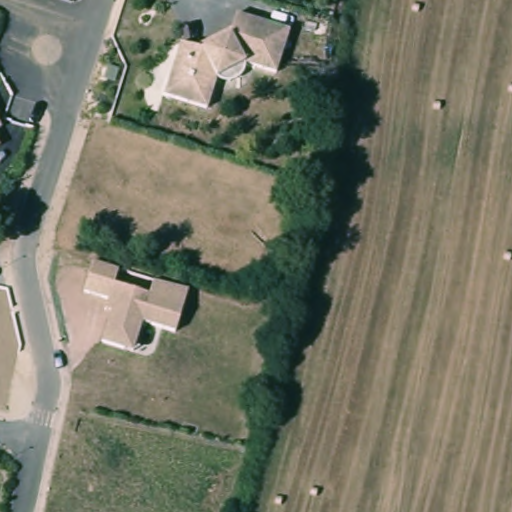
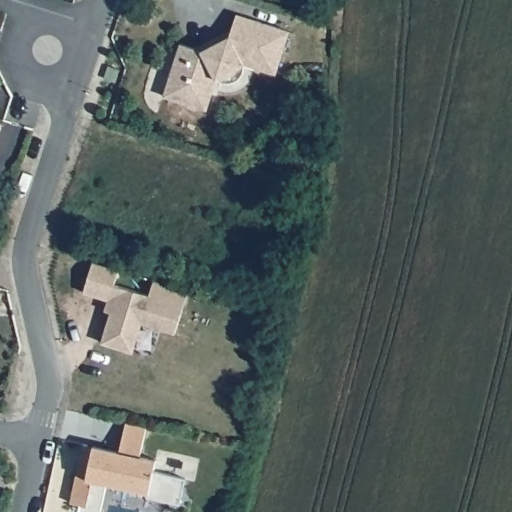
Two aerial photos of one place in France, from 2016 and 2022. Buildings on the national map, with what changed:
unchanged [(207,46),(229,34),(237,9),(293,29),(280,72),(246,62),(219,78),(211,109),(164,95),(179,37),(207,46)]
unchanged [(0,124),(0,121),(1,123),(0,124)]
unchanged [(0,144),(0,137),(3,142),(0,144)]
unchanged [(110,312),(104,310),(106,300),(83,291),(92,263),(119,270),(116,283),(148,293),(153,280),(189,290),(183,308),(175,332),(141,322),(131,353),(100,345),(110,312)]
new [(73,503),(83,457),(85,445),(95,446),(121,452),(127,422),(148,427),(142,456),(159,460),(156,471),(188,478),(183,504),(150,497),(151,492),(108,483),(102,512),(81,512),(82,506),(73,503)]

